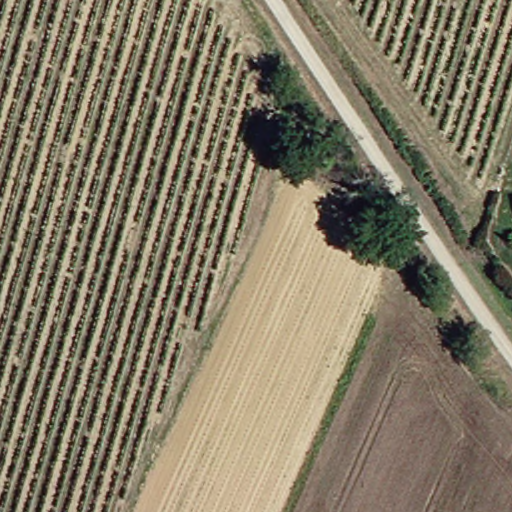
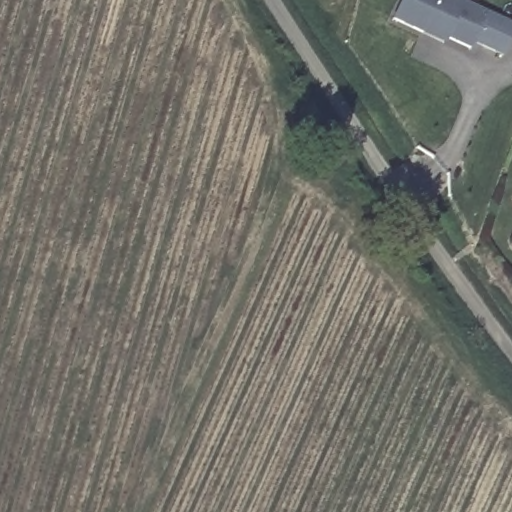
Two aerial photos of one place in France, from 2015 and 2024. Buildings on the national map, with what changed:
new [(512,34),(503,55),(474,44),(471,50),(446,39),(444,44),(391,19),(399,0),(458,0),(512,24),(512,34)]

